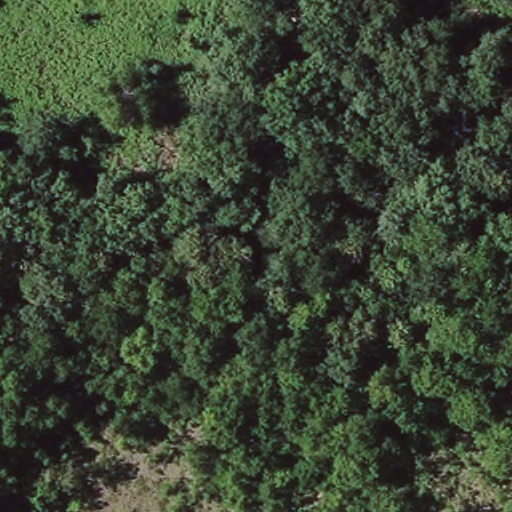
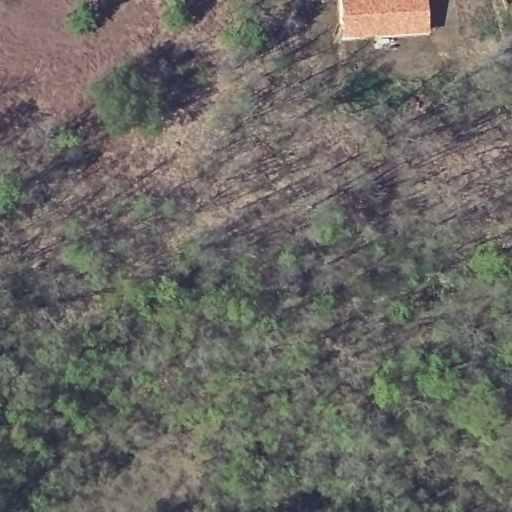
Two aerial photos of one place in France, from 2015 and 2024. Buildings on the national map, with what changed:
new [(340,0),(425,0),(428,32),(343,39),(340,0)]

